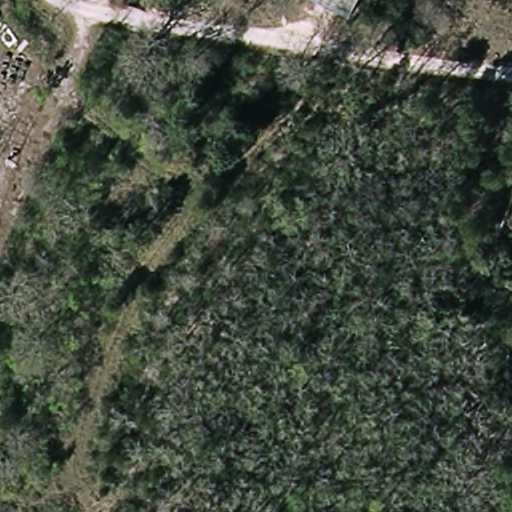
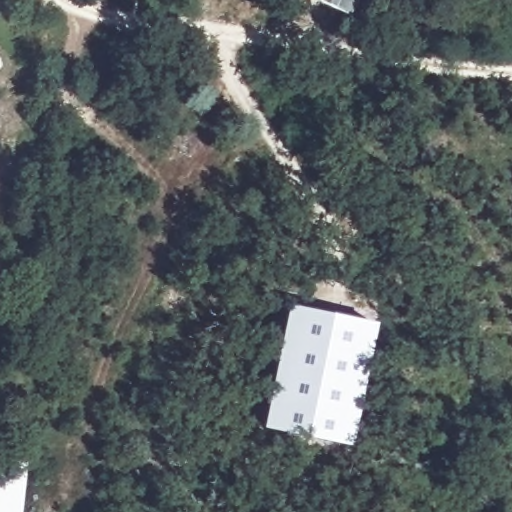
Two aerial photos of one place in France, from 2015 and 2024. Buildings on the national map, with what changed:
unchanged [(351,19),(318,0),(361,0),(351,19)]
new [(380,324),(353,446),(265,429),(290,305),(380,324)]
new [(23,512),(0,512),(0,460),(28,462),(23,512)]

